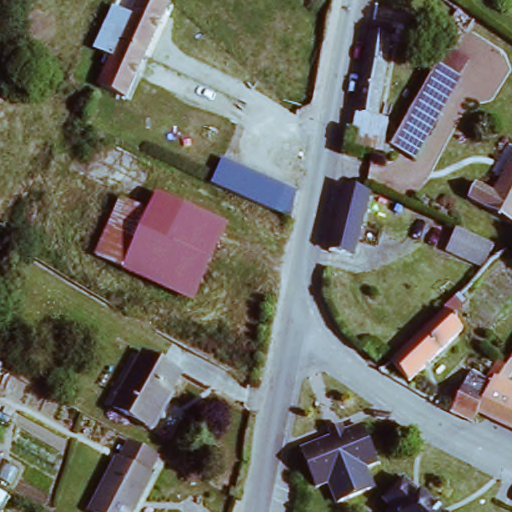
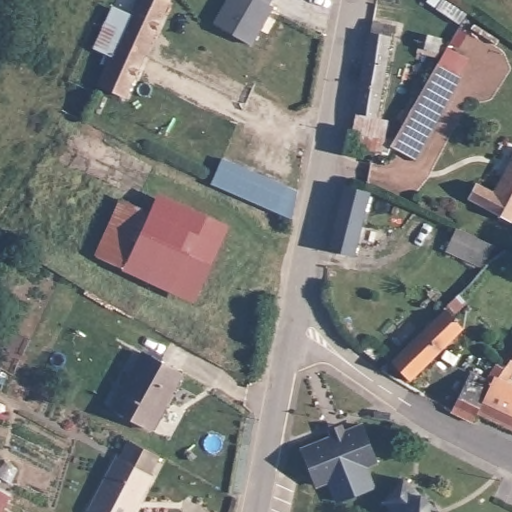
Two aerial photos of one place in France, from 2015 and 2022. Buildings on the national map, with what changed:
unchanged [(109,23),(112,18),(109,16),(114,6),(132,15),(139,0),(170,0),(128,95),(101,83),(115,54),(96,46),(107,23),(109,23)]
new [(273,0),(269,6),(274,9),(251,47),(216,26),(231,0),(273,0)]
unchanged [(351,143),(356,129),(353,128),(374,19),(394,22),(378,116),(389,118),(387,135),(384,149),(351,143)]
unchanged [(416,155),(393,142),(433,69),(438,61),(462,75),(416,155)]
unchanged [(479,181),(495,190),(512,158),(512,218),(471,196),(479,181)]
unchanged [(294,220),(214,187),(214,185),(226,161),(294,191),(294,220)]
unchanged [(331,246),(335,231),(346,186),(369,192),(354,251),(331,246)]
unchanged [(156,192),(226,214),(194,295),(125,265),(148,214),(156,192)]
unchanged [(125,265),(123,267),(93,253),(119,200),(148,214),(125,265)]
unchanged [(448,249),(458,226),(494,242),(483,265),(448,249)]
unchanged [(444,306),(458,292),(466,300),(452,313),(464,326),(411,377),(393,358),(396,356),(446,307),(444,306)]
unchanged [(365,352),(370,346),(383,356),(376,363),(365,352)]
unchanged [(474,419),(452,408),(472,371),(486,379),(498,358),(504,362),(510,354),(511,353),(512,350),(512,372),(508,379),(512,381),(512,425),(479,409),(474,419)]
unchanged [(131,416),(116,408),(146,355),(184,376),(158,423),(154,429),(131,416)]
unchanged [(379,464),(319,487),(304,451),(334,440),(331,433),(344,428),(348,435),(366,428),(379,464)]
unchanged [(123,463),(133,444),(161,459),(151,477),(153,479),(135,512),(95,512),(94,512),(121,462),(123,463)]
unchanged [(394,505),(387,498),(406,478),(407,476),(444,512),(387,512),(394,505)]
unchanged [(13,499),(5,512),(0,512),(0,491),(13,499)]

